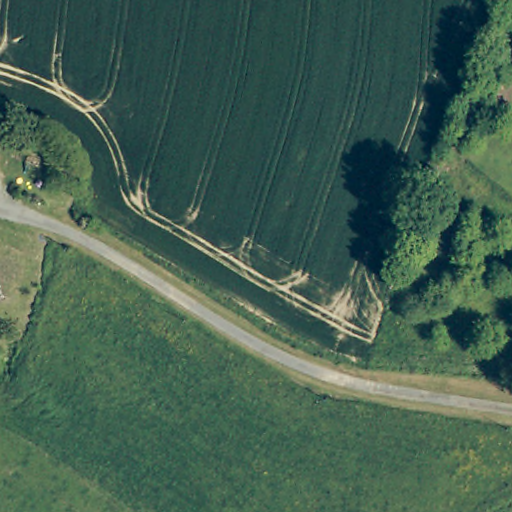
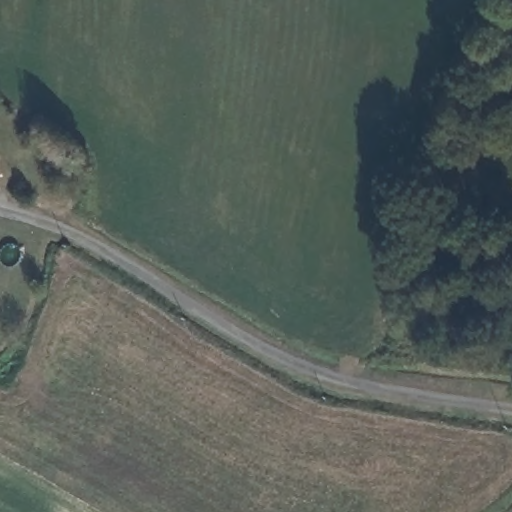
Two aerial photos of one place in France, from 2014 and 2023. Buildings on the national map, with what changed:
[]

